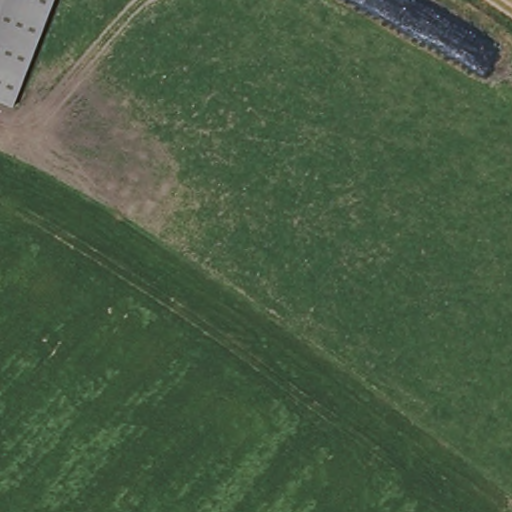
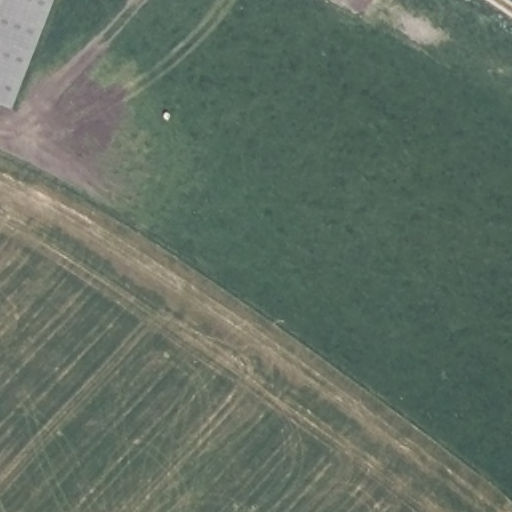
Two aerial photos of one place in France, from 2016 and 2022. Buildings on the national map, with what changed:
unchanged [(0,105),(0,0),(43,0),(1,105),(0,105)]

